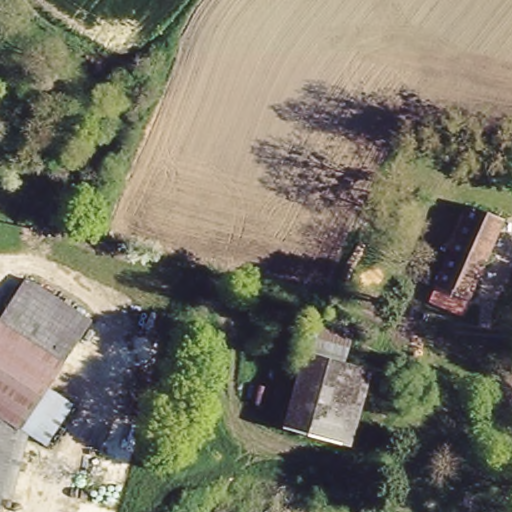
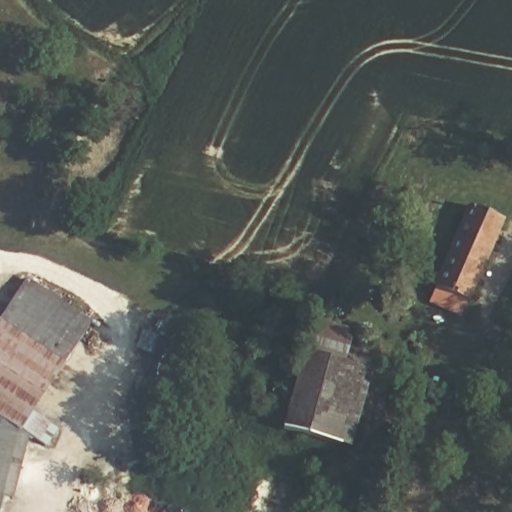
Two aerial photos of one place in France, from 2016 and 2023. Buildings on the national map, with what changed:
unchanged [(508,216),(457,313),(422,294),(473,197),(508,216)]
unchanged [(24,278),(90,321),(46,389),(72,406),(47,445),(25,437),(10,498),(0,497),(0,315),(24,278)]
unchanged [(347,448),(280,432),(302,353),(311,356),(323,317),(352,328),(342,365),(370,372),(347,448)]

